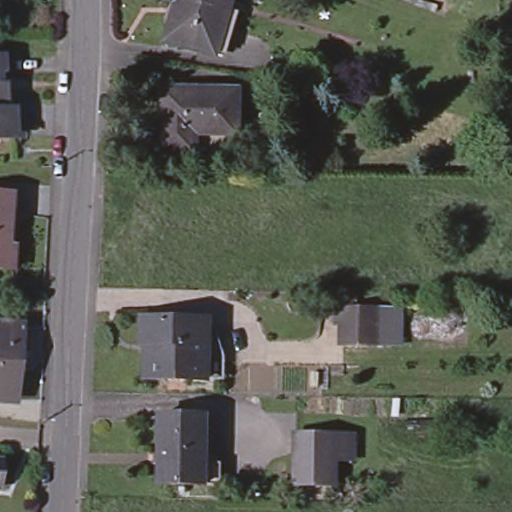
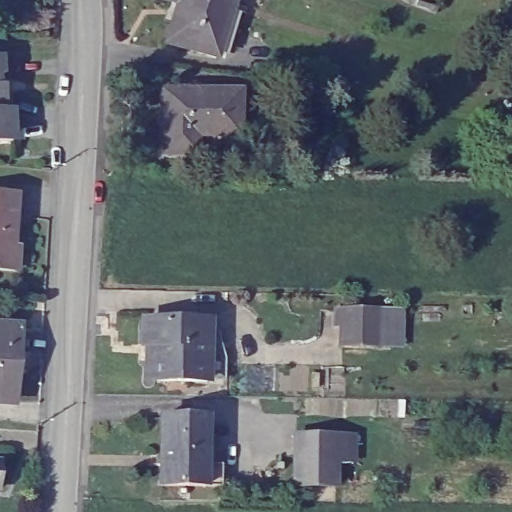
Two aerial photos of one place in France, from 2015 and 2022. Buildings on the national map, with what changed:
unchanged [(229,4),(236,7),(221,60),(171,44),(183,6),(171,2),(171,0),(230,0),(229,4)]
unchanged [(236,90),(235,133),(193,132),(193,150),(157,149),(159,87),(236,90)]
unchanged [(4,109),(10,108),(11,122),(12,138),(6,139),(0,139),(0,109),(4,109)]
unchanged [(14,191),(10,245),(16,246),(14,266),(0,265),(0,190),(14,191)]
unchanged [(333,335),(333,327),(326,326),(326,310),(338,310),(368,311),(383,311),(383,332),(368,331),(367,335),(367,347),(333,346),(333,335)]
unchanged [(208,378),(148,376),(149,342),(145,342),(145,326),(145,317),(208,319),(208,327),(208,378)]
unchanged [(13,402),(0,400),(0,327),(20,330),(13,402)]
unchanged [(197,420),(196,467),(211,467),(210,488),(148,487),(151,418),(197,420)]
unchanged [(331,432),(331,483),(291,483),(291,432),(331,432)]

